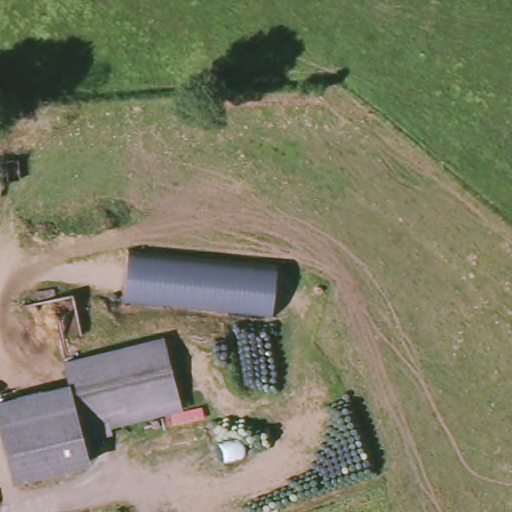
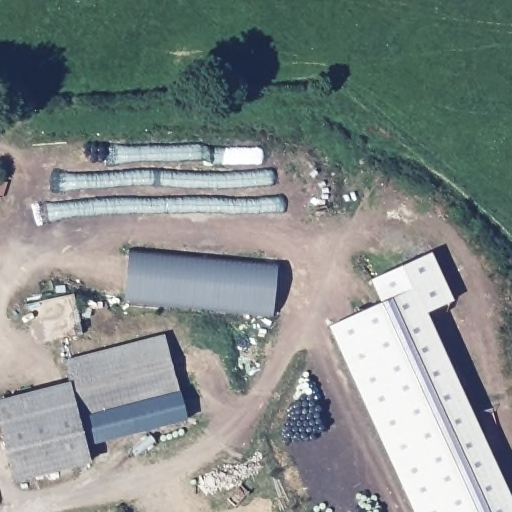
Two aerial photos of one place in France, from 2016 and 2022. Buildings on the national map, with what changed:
new [(425,312),(512,502),(512,512),(413,512),(329,327),(382,302),(370,281),(430,252),(452,300),(425,312)]
unchanged [(277,266),(275,313),(124,300),(129,254),(277,266)]
demolished [(110,287),(115,314),(82,319),(87,342),(66,345),(59,299),(110,287)]
unchanged [(64,361),(163,336),(181,407),(110,426),(112,432),(84,440),(69,383),(64,361)]
unchanged [(84,440),(90,462),(15,481),(0,423),(0,401),(69,383),(84,440)]

